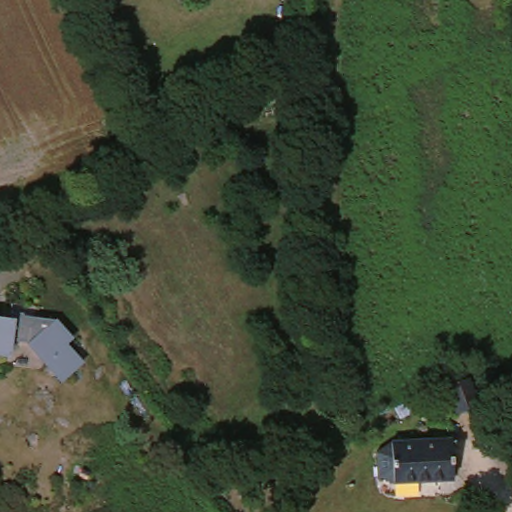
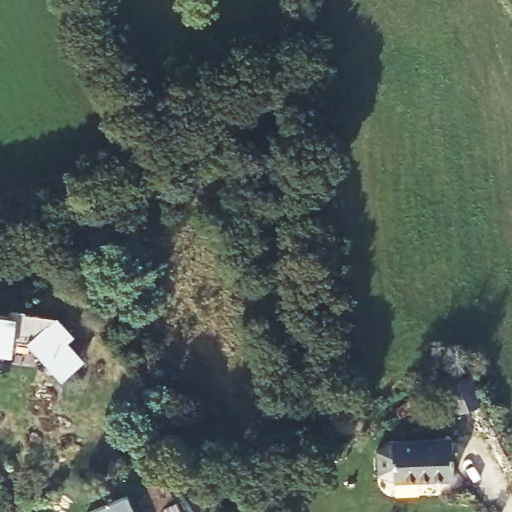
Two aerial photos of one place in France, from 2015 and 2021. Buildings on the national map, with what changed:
unchanged [(19,310),(60,315),(80,332),(72,340),(87,357),(63,381),(34,351),(0,348),(0,308),(19,310)]
unchanged [(470,380),(483,407),(461,418),(447,391),(470,380)]
unchanged [(453,444),(454,485),(396,486),(393,447),(453,444)]
new [(127,495),(134,512),(89,512),(127,495)]

